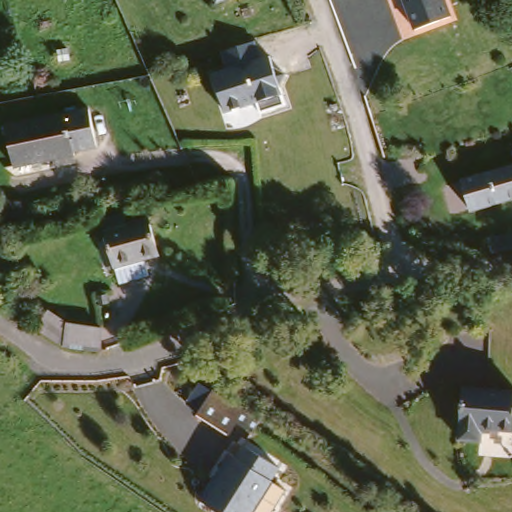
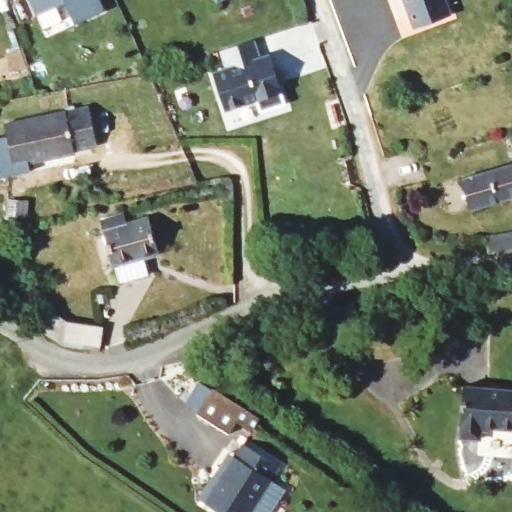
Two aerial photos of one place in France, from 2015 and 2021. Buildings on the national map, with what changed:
new [(99,0),(104,12),(74,25),(65,4),(37,16),(31,0),(99,0)]
unchanged [(445,0),(448,11),(412,24),(404,0),(445,0)]
unchanged [(258,102),(226,111),(212,74),(230,69),(225,51),(256,41),(261,58),(270,55),(274,66),(286,74),(281,87),(286,105),(261,111),(258,102)]
unchanged [(91,105),(99,141),(77,146),(78,152),(18,165),(16,166),(8,124),(91,105)]
unchanged [(442,183),(512,166),(512,197),(449,213),(442,183)]
unchanged [(151,209),(163,247),(141,254),(146,271),(117,280),(100,225),(151,209)]
unchanged [(512,229),(512,248),(487,254),(481,235),(512,229)]
unchanged [(48,308),(71,325),(106,326),(106,346),(66,346),(36,324),(48,308)]
unchanged [(225,400),(254,419),(246,430),(232,421),(227,429),(225,433),(191,413),(198,402),(208,387),(217,396),(225,394),(225,400)]
unchanged [(454,387),(511,391),(508,431),(490,429),(490,426),(477,425),(476,438),(452,437),(454,387)]
unchanged [(277,461),(245,512),(219,512),(199,500),(239,437),(277,461)]

